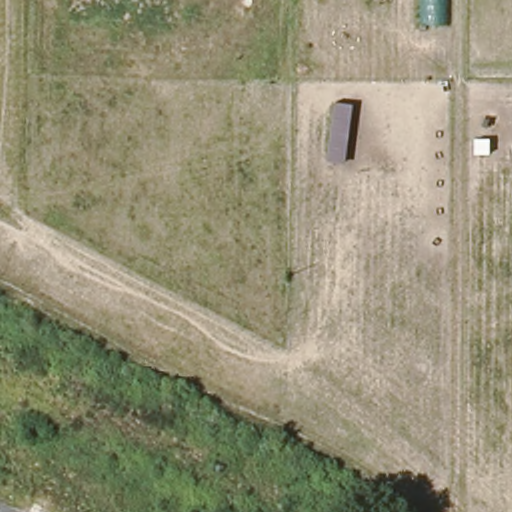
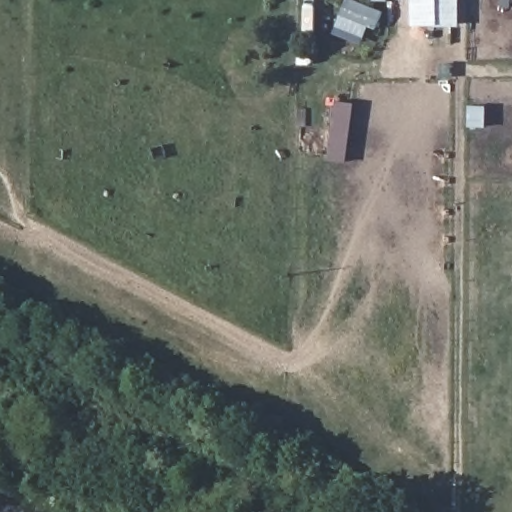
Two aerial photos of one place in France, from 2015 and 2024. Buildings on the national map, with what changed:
new [(376,30),(369,27),(362,45),(334,33),(347,0),(355,0),(383,12),(376,30)]
new [(414,0),(460,0),(460,26),(414,26),(414,0)]

